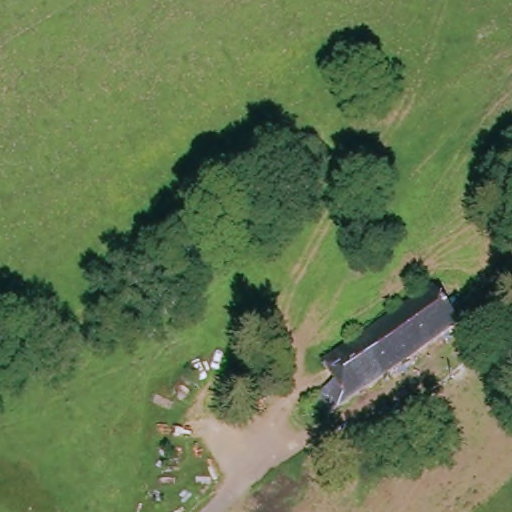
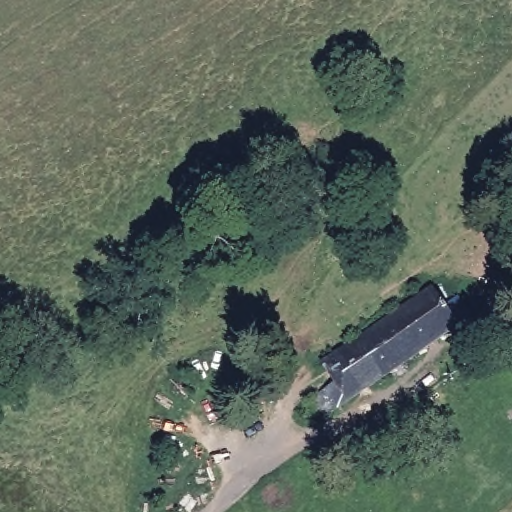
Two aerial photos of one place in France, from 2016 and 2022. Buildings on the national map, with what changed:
unchanged [(322,362),(428,286),(456,327),(325,419),(312,398),(333,381),(322,362)]

